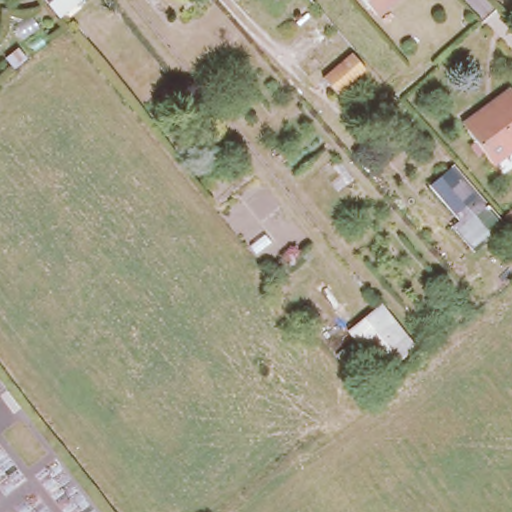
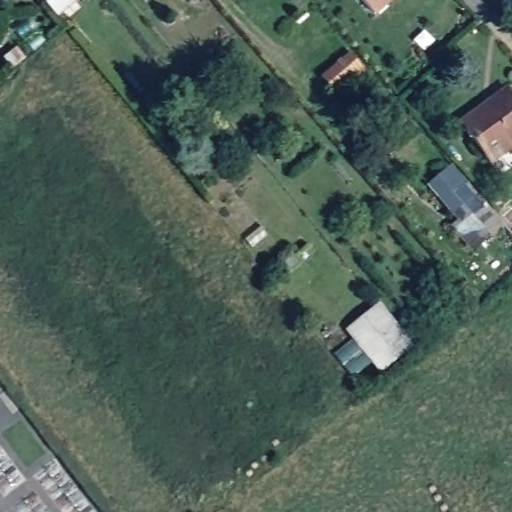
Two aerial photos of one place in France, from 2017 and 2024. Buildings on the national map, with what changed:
unchanged [(60,19),(45,0),(82,0),(60,19)]
unchanged [(234,0),(236,0),(234,1),(234,0)]
unchanged [(364,0),(384,0),(373,10),(364,0)]
unchanged [(338,89),(323,72),(353,45),(368,62),(338,89)]
unchanged [(512,92),(512,148),(497,162),(468,131),(464,126),(489,102),(507,87),(512,92)]
unchanged [(461,224),(468,219),(434,179),(454,161),(505,220),(478,243),(471,249),(454,230),(461,224)]
unchanged [(363,348),(344,363),(336,354),(355,339),(348,330),(380,303),(415,346),(382,372),(372,360),(353,376),(345,366),(364,351),(363,348)]

